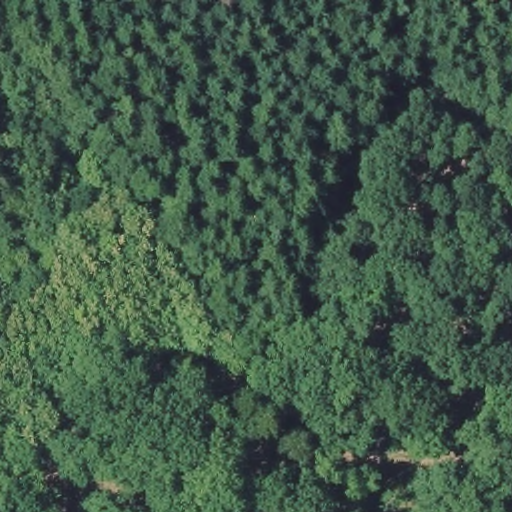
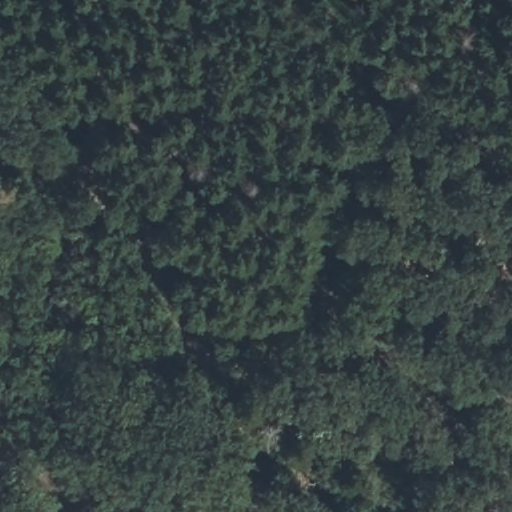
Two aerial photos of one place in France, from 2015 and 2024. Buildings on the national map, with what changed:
[]

